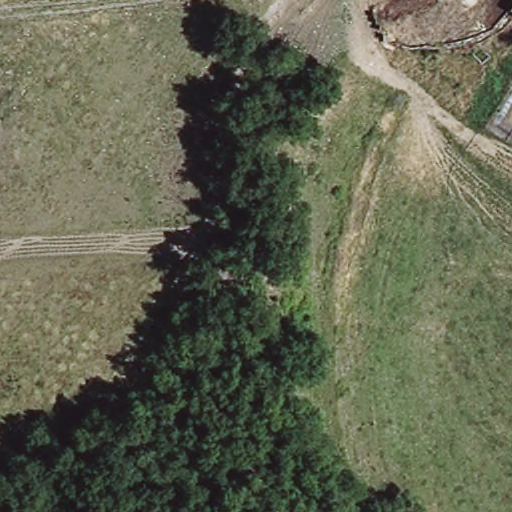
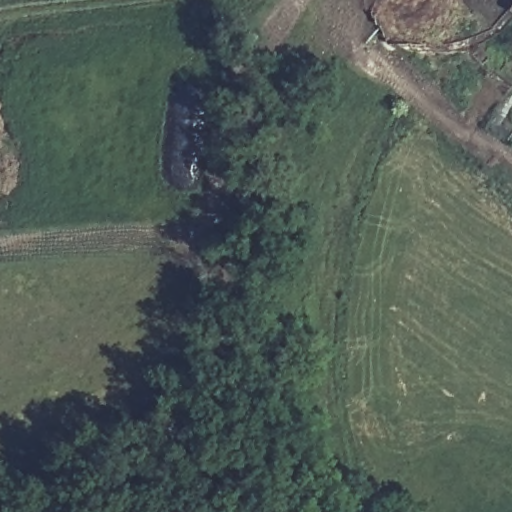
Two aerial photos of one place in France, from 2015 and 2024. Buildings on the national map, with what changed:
unchanged [(506,0),(512,0),(512,5),(506,1),(506,0)]

